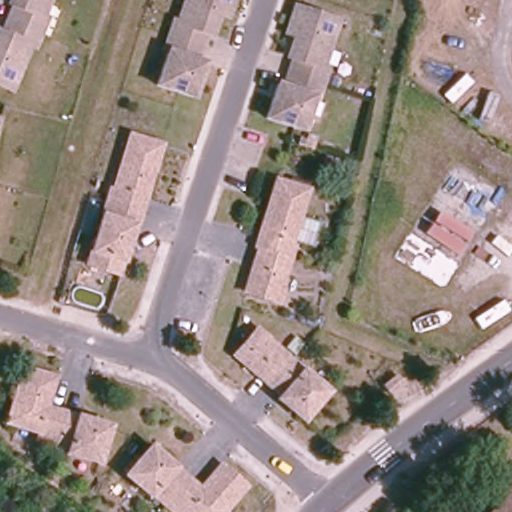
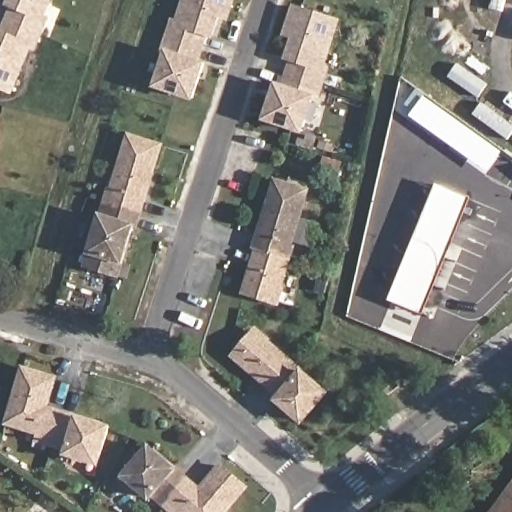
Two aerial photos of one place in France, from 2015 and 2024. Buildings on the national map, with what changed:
unchanged [(32,48),(27,46),(9,91),(0,87),(0,27),(9,5),(5,4),(6,0),(46,0),(39,16),(45,19),(32,48)]
unchanged [(164,54),(159,52),(164,37),(168,22),(173,24),(180,0),(229,0),(225,11),(216,9),(207,35),(203,34),(194,61),(201,64),(190,99),(153,87),(164,54)]
unchanged [(273,84),(280,85),(288,57),(284,56),(292,29),(284,26),(291,5),(335,20),(320,66),(325,67),(320,82),(316,97),(311,96),(301,130),(263,118),(273,84)]
unchanged [(109,191),(124,138),(156,147),(132,229),(127,227),(114,275),(82,266),(105,190),(109,191)]
unchanged [(307,191),(292,247),(294,248),(278,305),(246,296),(258,252),(256,251),(275,182),(307,191)]
new [(437,185),(472,198),(425,313),(391,300),(437,185)]
unchanged [(274,400),(276,398),(228,353),(252,327),(321,390),(295,420),(274,400)]
unchanged [(62,445),(29,435),(31,430),(2,420),(19,365),(51,374),(42,405),(106,425),(94,462),(60,451),(62,445)]
unchanged [(390,389),(404,376),(412,384),(395,398),(390,389)]
unchanged [(172,512),(151,491),(146,496),(122,473),(151,445),(196,490),(219,465),(244,490),(222,512),(185,512),(180,506),(174,512),(172,512)]
unchanged [(500,512),(512,496),(512,512),(500,512)]

